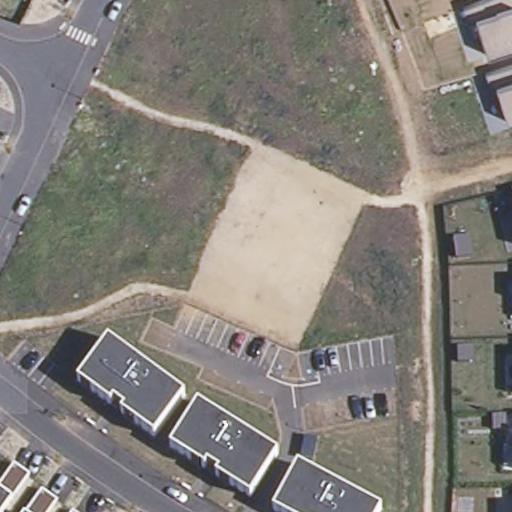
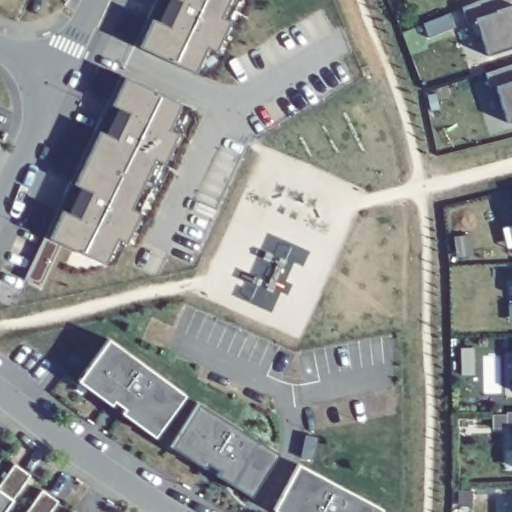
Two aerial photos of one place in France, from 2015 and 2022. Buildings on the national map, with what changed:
new [(143,46),(135,44),(156,0),(237,0),(229,21),(215,49),(203,76),(143,46)]
unchanged [(479,29),(470,32),(462,8),(483,0),(512,0),(512,47),(487,55),(479,29)]
unchanged [(512,66),(512,123),(507,124),(498,89),(488,72),(512,66)]
new [(121,74),(126,77),(180,103),(168,130),(176,135),(164,163),(160,161),(139,213),(126,242),(122,240),(111,265),(105,262),(62,243),(40,286),(25,278),(121,74)]
demolished [(213,324),(279,351),(270,380),(202,352),(213,324)]
unchanged [(121,411),(125,408),(115,400),(111,404),(78,380),(110,337),(186,394),(155,436),(121,411)]
unchanged [(216,475),(219,470),(208,463),(205,468),(171,446),(200,402),(279,452),(251,496),(216,475)]
unchanged [(18,464),(32,474),(15,498),(5,511),(6,512),(0,512),(0,485),(16,463),(18,464)]
unchanged [(382,508),(380,512),(278,512),(273,509),(298,463),(382,508)]
unchanged [(60,500),(51,512),(28,512),(43,489),(60,500)]
unchanged [(76,512),(73,512),(74,511),(76,512)]

